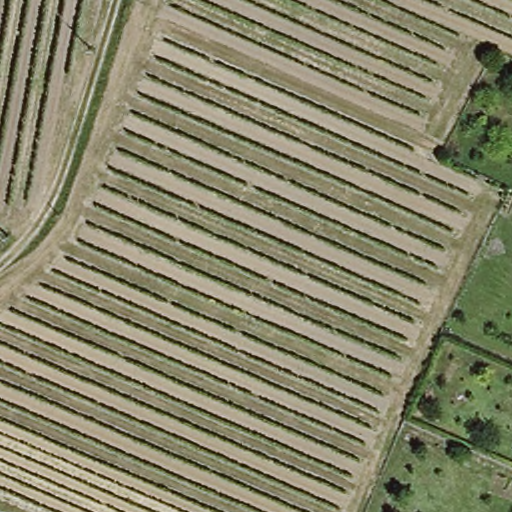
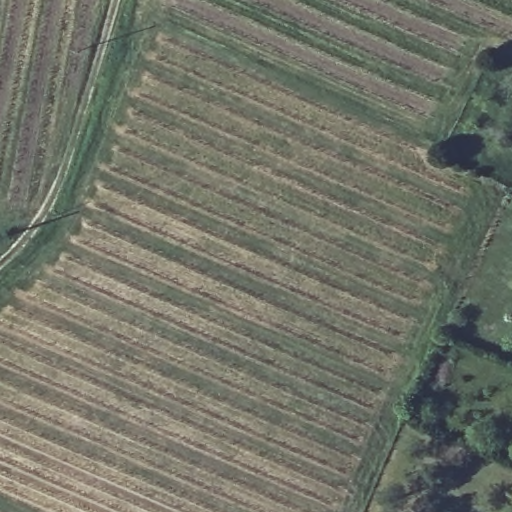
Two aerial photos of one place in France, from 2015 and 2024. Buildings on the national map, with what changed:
[]

